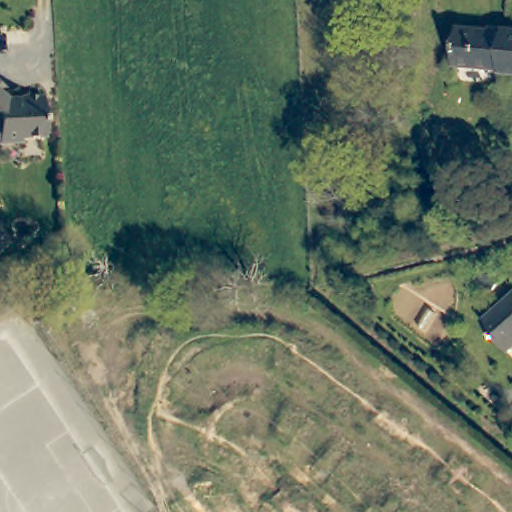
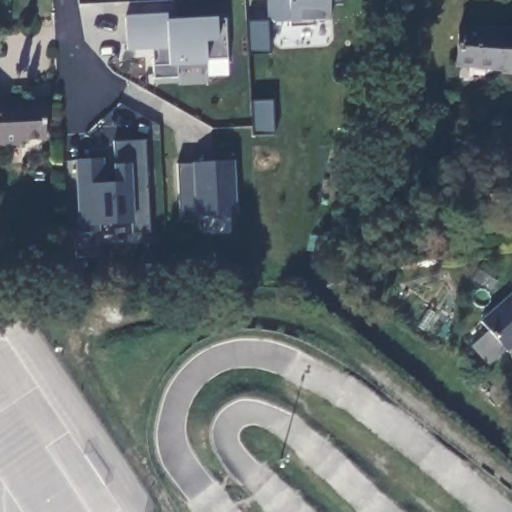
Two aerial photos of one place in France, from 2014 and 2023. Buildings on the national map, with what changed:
new [(340,4),(329,5),(330,20),(273,25),(266,16),(266,0),(340,0),(340,4)]
new [(227,60),(205,61),(206,65),(176,66),(177,79),(152,80),(151,56),(156,55),(155,49),(126,51),(124,19),(166,16),(167,23),(225,20),(227,60)]
unchanged [(504,25),(512,27),(512,72),(496,70),(497,66),(452,60),(457,24),(503,31),(504,25)]
demolished [(30,39),(0,40),(0,25),(30,25),(30,39)]
unchanged [(13,103),(25,102),(25,99),(42,99),(44,141),(20,142),(20,147),(3,145),(3,136),(0,133),(0,87),(13,103)]
new [(130,234),(129,224),(98,225),(98,232),(78,232),(73,160),(104,157),(103,182),(114,181),(113,164),(110,141),(144,140),(149,230),(130,234)]
new [(196,219),(178,220),(175,164),(193,161),(232,160),(235,215),(196,219)]
unchanged [(483,315),(512,290),(512,345),(509,347),(483,315)]

